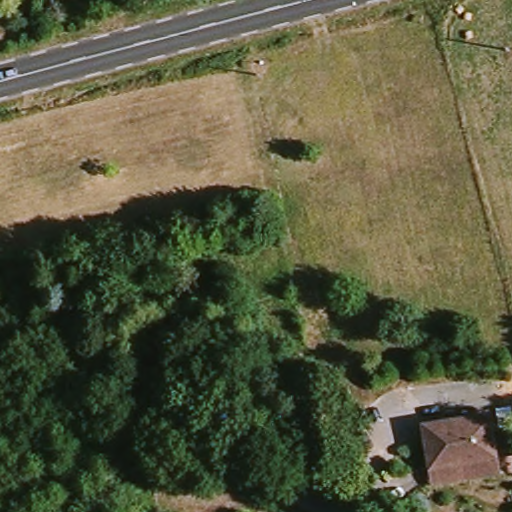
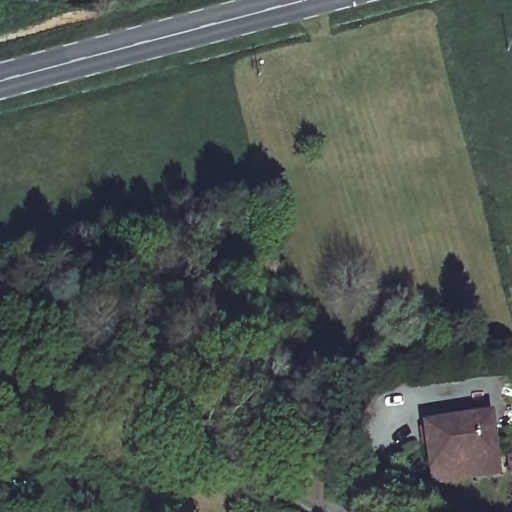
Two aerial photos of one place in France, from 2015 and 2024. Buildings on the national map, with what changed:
unchanged [(429,476),(423,433),(488,422),(494,465),(429,476)]

